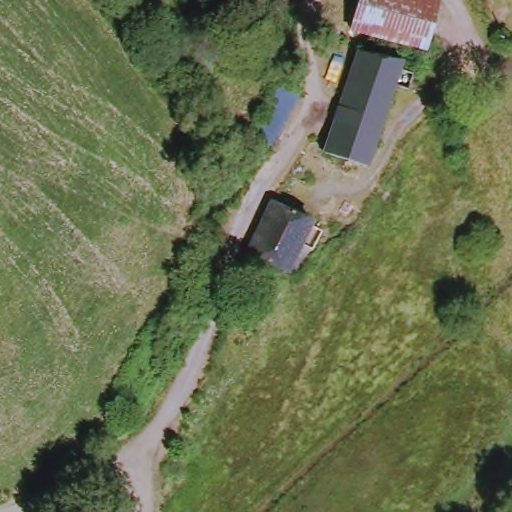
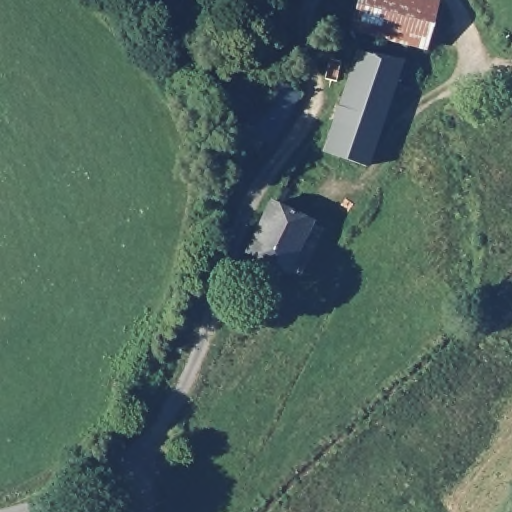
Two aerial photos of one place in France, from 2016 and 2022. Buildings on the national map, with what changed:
unchanged [(247,0),(284,0),(273,17),(247,0)]
unchanged [(351,30),(361,0),(437,0),(424,49),(351,30)]
unchanged [(370,164),(324,154),(359,51),(397,61),(398,62),(370,164)]
unchanged [(294,94),(267,147),(251,138),(272,100),(266,99),(276,83),(294,94)]
unchanged [(267,201),(305,224),(279,271),(242,251),(267,201)]

